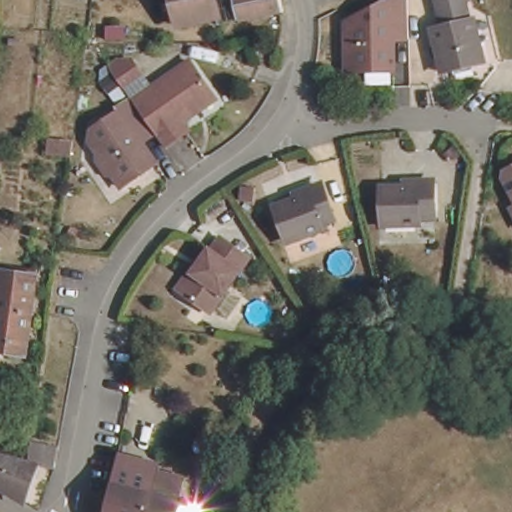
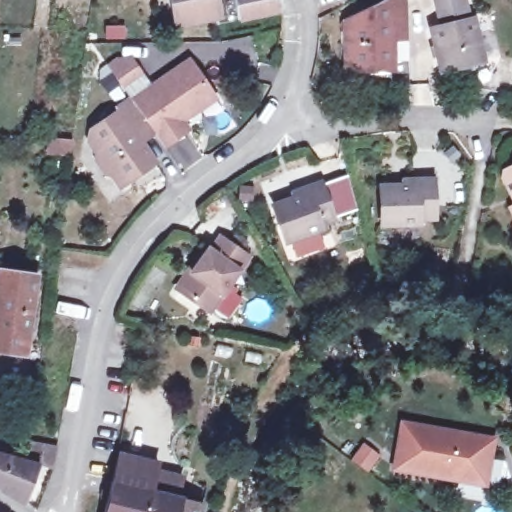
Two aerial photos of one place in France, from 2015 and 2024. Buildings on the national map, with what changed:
new [(2,0),(0,25),(0,0),(2,0)]
unchanged [(280,8),(236,17),(236,20),(218,24),(216,15),(176,24),(171,0),(279,0),(280,6),(280,8)]
unchanged [(442,22),(435,0),(463,0),(468,14),(475,12),(488,56),(446,68),(434,24),(442,22)]
unchanged [(407,2),(408,40),(393,40),(393,70),(346,71),(345,23),(389,2),(407,2)]
unchanged [(188,56),(211,91),(216,97),(201,107),(183,119),(188,128),(162,145),(156,137),(128,94),(188,56)]
unchanged [(110,71),(120,65),(135,65),(143,78),(124,91),(110,71)]
unchanged [(156,137),(144,145),(156,161),(120,184),(114,174),(105,173),(94,155),(95,149),(86,136),(89,125),(115,109),(112,103),(127,93),(128,94),(156,137)]
unchanged [(507,175),(512,173),(512,198),(505,184),(507,175)]
unchanged [(276,203),(296,195),(296,190),(321,181),(334,215),(309,224),(311,228),(288,236),(276,203)]
unchanged [(383,189),(409,188),(409,183),(433,182),(434,218),(411,219),(411,223),(384,224),(383,189)]
unchanged [(174,288),(204,245),(207,246),(216,234),(246,255),(206,310),(174,288)]
unchanged [(24,274),(33,275),(23,353),(0,350),(0,270),(24,274)]
new [(400,420),(497,436),(489,488),(392,470),(400,420)]
new [(364,444),(379,455),(368,471),(353,460),(364,444)]
unchanged [(29,470),(29,467),(31,455),(58,460),(54,475),(53,479),(41,477),(27,509),(0,493),(0,464),(29,470)]
unchanged [(120,455),(161,465),(159,472),(180,478),(176,496),(114,479),(120,455)]
unchanged [(114,479),(176,496),(201,503),(198,512),(106,512),(114,479)]

